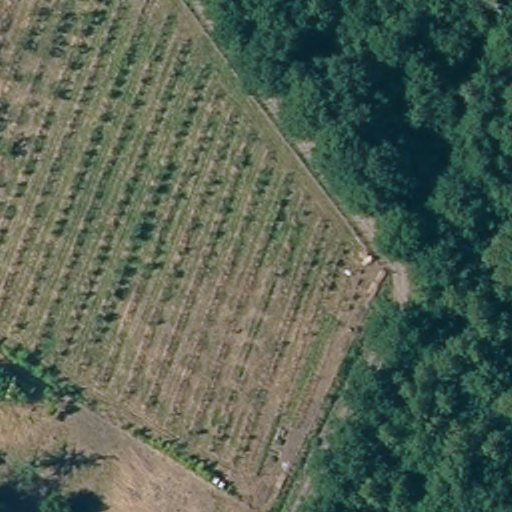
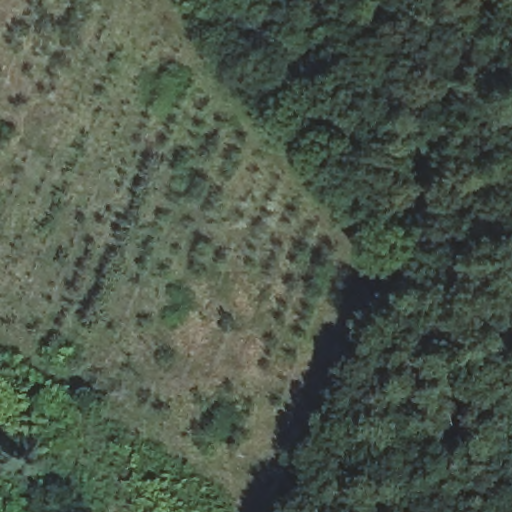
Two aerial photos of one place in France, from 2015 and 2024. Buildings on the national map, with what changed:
[]

